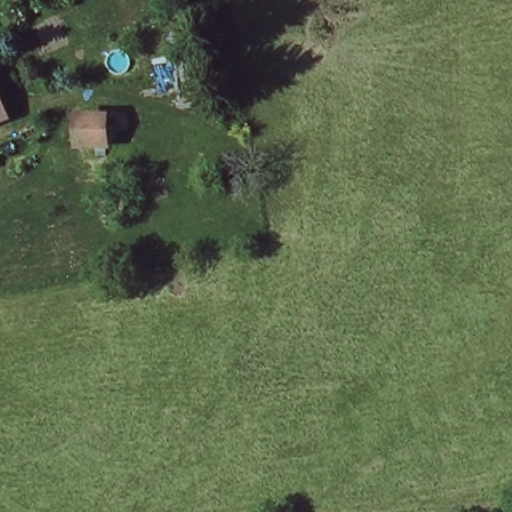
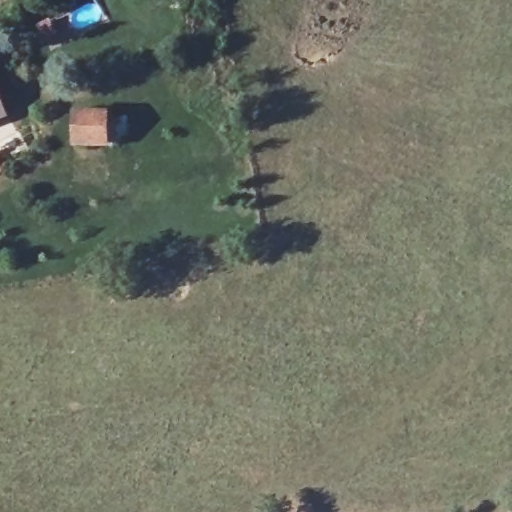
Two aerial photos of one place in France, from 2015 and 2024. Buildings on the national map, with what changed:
unchanged [(0,120),(0,97),(7,117),(0,120)]
unchanged [(100,116),(100,146),(74,145),(74,115),(100,116)]

